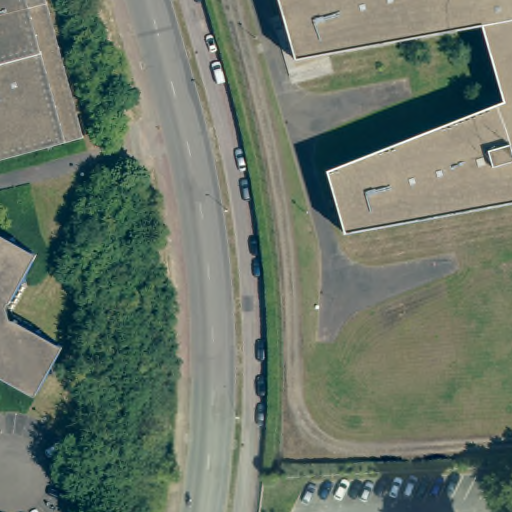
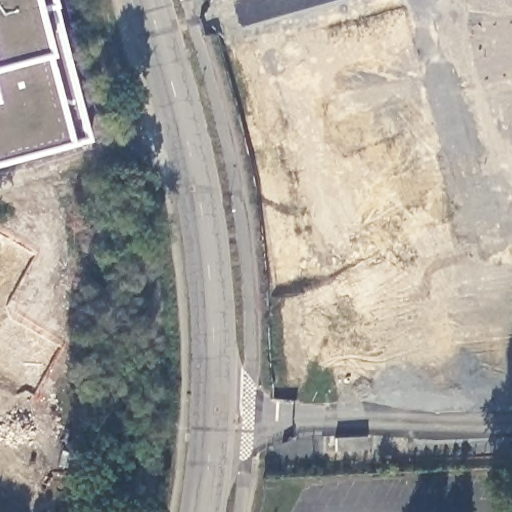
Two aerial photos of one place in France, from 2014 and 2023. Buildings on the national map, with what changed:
unchanged [(84,136),(0,158),(0,0),(46,0),(49,11),(84,136)]
demolished [(344,232),(326,170),(501,100),(479,26),(294,60),(278,0),(512,0),(512,202),(344,232)]
unchanged [(35,250),(32,255),(6,301),(6,302),(8,307),(10,314),(41,331),(61,343),(49,363),(44,372),(41,378),(34,392),(0,373),(0,230),(35,250)]

